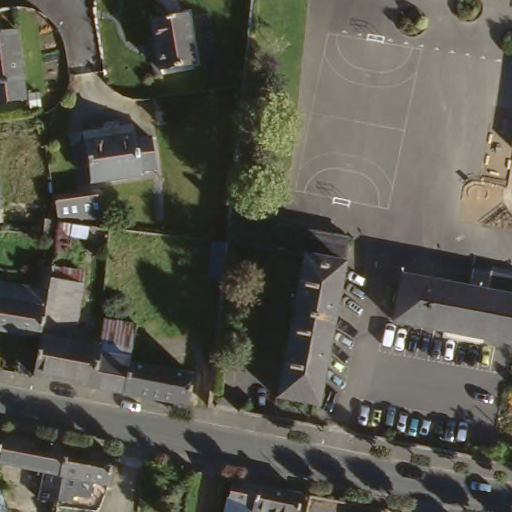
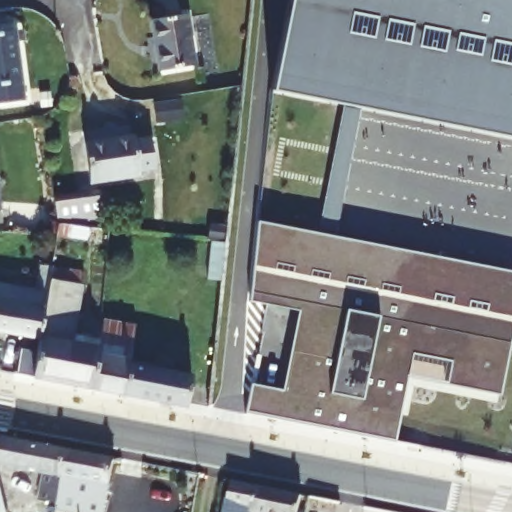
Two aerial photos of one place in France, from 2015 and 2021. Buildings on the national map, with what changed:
new [(309,22),(313,5),(289,0),(512,0),(512,119),(276,75),(284,18),(309,22)]
unchanged [(151,21),(186,15),(195,65),(159,71),(151,21)]
unchanged [(16,30),(25,100),(0,103),(0,33),(16,30)]
unchanged [(181,100),(183,118),(158,122),(155,105),(181,100)]
unchanged [(91,183),(85,142),(134,135),(135,140),(151,137),(156,169),(143,171),(143,175),(91,183)]
unchanged [(92,192),(99,191),(104,227),(58,222),(54,197),(69,195),(92,192)]
unchanged [(1,204),(0,205),(0,200),(1,204)]
unchanged [(1,218),(0,218),(0,205),(1,218)]
demolished [(303,259),(225,245),(226,244),(228,216),(348,239),(316,406),(276,398),(303,259)]
new [(282,391),(298,310),(251,300),(258,219),(512,272),(512,343),(501,395),(448,385),(453,361),(413,354),(397,441),(247,410),(253,385),(282,391)]
unchanged [(55,222),(54,235),(43,234),(44,221),(55,222)]
unchanged [(212,242),(226,244),(225,245),(221,281),(208,280),(212,242)]
unchanged [(35,284),(39,260),(51,261),(51,265),(39,334),(0,328),(0,278),(35,284)]
unchanged [(21,345),(37,347),(39,334),(51,265),(83,270),(82,281),(73,330),(100,336),(103,315),(136,320),(128,359),(122,390),(33,372),(18,370),(21,345)]
demolished [(418,348),(431,350),(426,374),(406,370),(413,326),(393,323),(402,277),(488,293),(512,297),(512,345),(421,328),(418,348)]
unchanged [(122,390),(128,359),(129,359),(193,371),(187,402),(122,390)]
unchanged [(43,500),(48,472),(0,464),(0,450),(3,436),(73,450),(118,458),(113,486),(67,477),(61,503),(43,500)]
unchanged [(234,512),(228,511),(229,506),(226,506),(231,481),(301,495),(297,512),(234,512)]
unchanged [(4,512),(0,512),(0,494),(4,512)]

